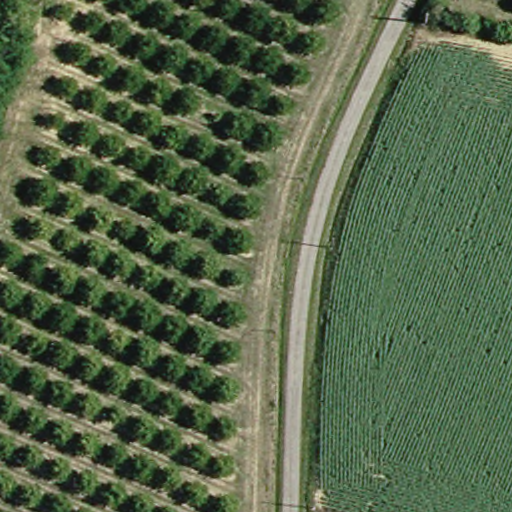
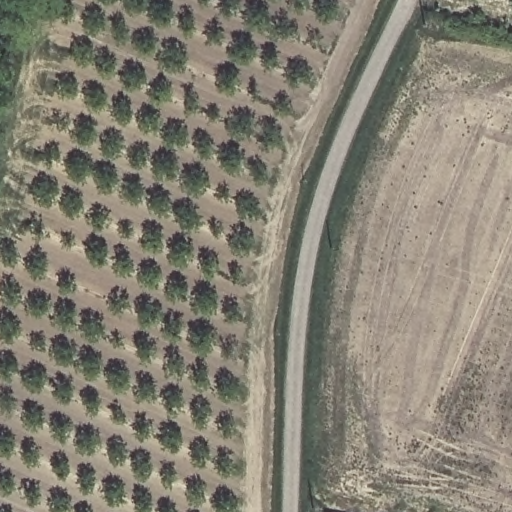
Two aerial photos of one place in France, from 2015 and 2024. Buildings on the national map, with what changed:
[]

